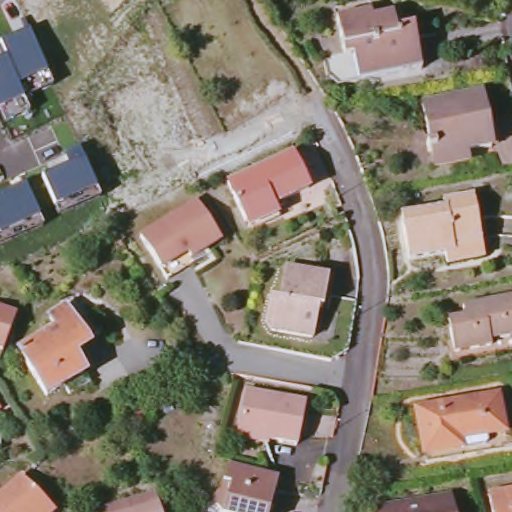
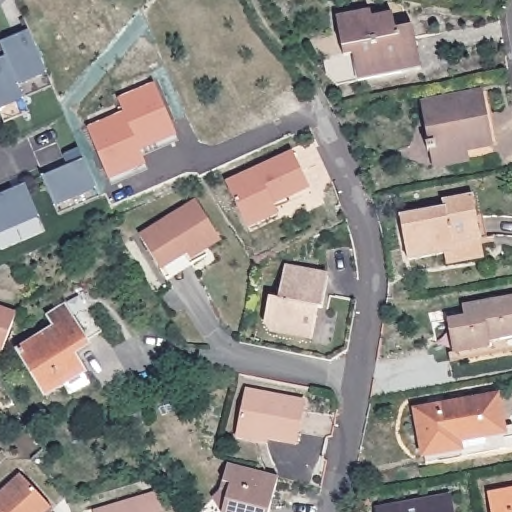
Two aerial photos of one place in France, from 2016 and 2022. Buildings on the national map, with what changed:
unchanged [(374,8),(375,14),(396,10),(401,33),(419,29),(426,65),(355,80),(342,14),(374,8)]
unchanged [(50,76),(21,89),(26,103),(0,113),(0,63),(9,60),(4,45),(32,33),(50,76)]
new [(141,153),(147,165),(110,180),(89,128),(126,112),(119,98),(155,83),(177,136),(179,143),(141,153)]
unchanged [(436,163),(434,153),(434,147),(429,149),(427,140),(432,139),(424,99),(483,89),(493,142),(468,146),(469,156),(436,163)]
unchanged [(294,150),(310,184),(267,205),(269,209),(246,219),(229,182),(294,150)]
unchanged [(99,193),(59,209),(45,178),(86,161),(99,193)]
unchanged [(43,219),(0,237),(0,199),(27,187),(43,219)]
unchanged [(449,209),(446,201),(477,195),(482,217),(488,215),(494,246),(413,262),(405,217),(449,209)]
unchanged [(199,205),(222,243),(192,261),(189,256),(161,273),(142,239),(199,205)]
unchanged [(267,319),(273,295),(283,298),(290,267),(329,275),(322,305),(320,305),(314,336),(275,329),(267,319)]
unchanged [(464,303),(512,294),(512,348),(451,359),(449,352),(454,351),(448,317),(466,314),(464,303)]
unchanged [(57,328),(50,315),(66,306),(86,342),(72,350),(90,383),(71,394),(66,386),(48,395),(21,348),(57,328)]
unchanged [(17,315),(7,342),(4,349),(3,350),(0,349),(0,309),(17,315)]
unchanged [(305,409),(297,452),(238,439),(246,398),(305,409)]
unchanged [(487,399),(492,428),(503,426),(506,448),(426,463),(418,411),(487,399)]
unchanged [(1,407),(0,407),(0,406),(1,407)]
unchanged [(215,502),(221,495),(228,469),(278,481),(271,512),(224,512),(225,512),(215,502)]
unchanged [(22,480),(53,511),(51,512),(0,512),(0,502),(22,480)]
unchanged [(155,492),(160,512),(96,512),(95,509),(155,492)]
unchanged [(450,496),(452,512),(383,512),(382,509),(450,496)]
unchanged [(489,501),(512,496),(512,512),(491,512),(489,501)]

